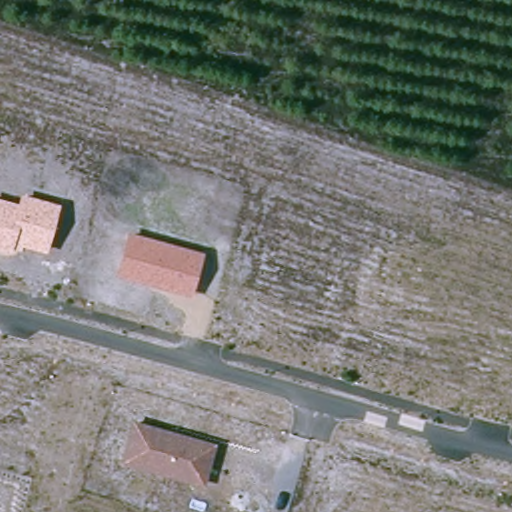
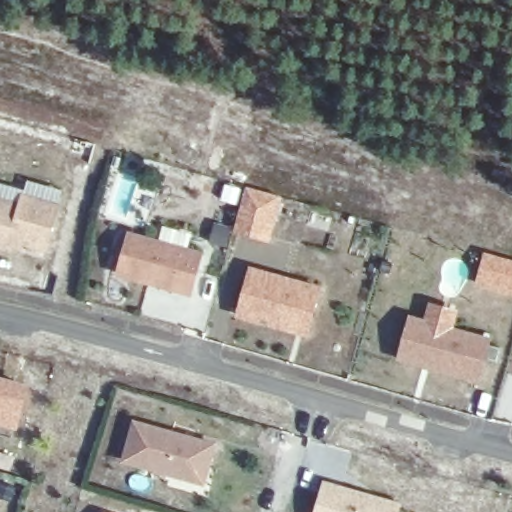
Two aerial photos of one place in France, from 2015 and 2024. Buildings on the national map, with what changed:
new [(247,190),(281,199),(269,242),(235,233),(247,190)]
unchanged [(49,254),(24,247),(23,251),(13,249),(13,255),(0,251),(0,200),(20,204),(21,195),(61,204),(49,254)]
unchanged [(189,296),(116,275),(126,233),(205,252),(189,296)]
new [(512,259),(512,295),(476,285),(484,252),(512,259)]
new [(253,270),(320,289),(315,308),(308,335),(240,316),(241,311),(253,270)]
new [(491,337),(480,383),(398,362),(409,315),(491,337)]
new [(15,424),(0,419),(0,380),(25,388),(15,424)]
unchanged [(121,462),(135,420),(216,446),(205,485),(121,462)]
new [(342,488),(365,495),(371,497),(400,505),(397,512),(318,512),(324,492),(326,484),(342,488)]

